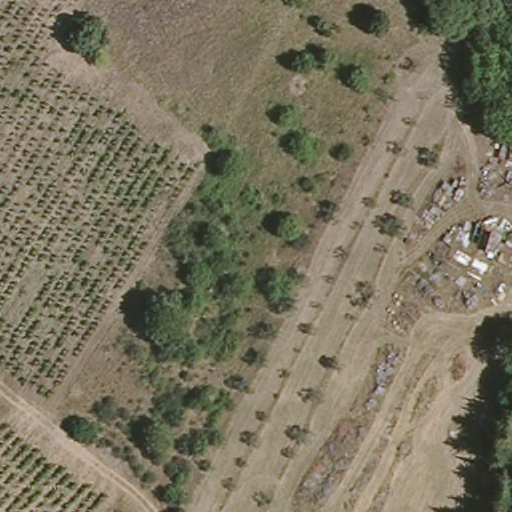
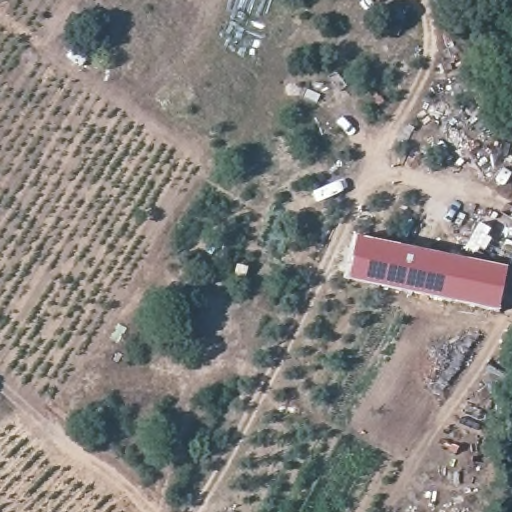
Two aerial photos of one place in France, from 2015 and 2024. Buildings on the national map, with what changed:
new [(355,235),(507,266),(498,311),(414,292),(345,279),(355,235)]

